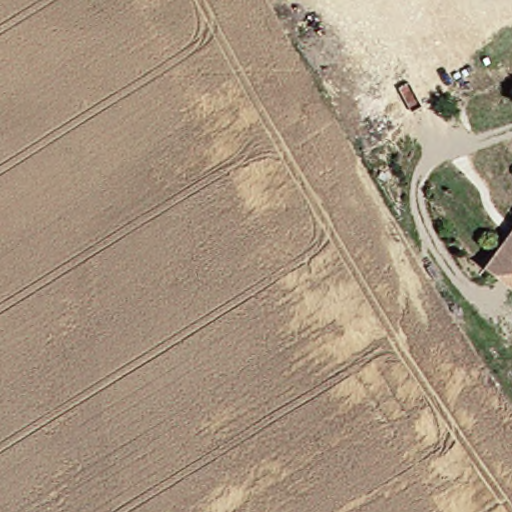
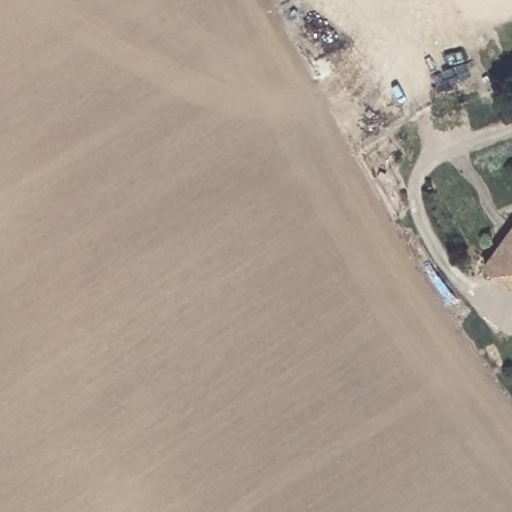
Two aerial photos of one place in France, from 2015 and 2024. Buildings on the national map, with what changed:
unchanged [(512,222),(512,278),(484,255),(512,222)]

